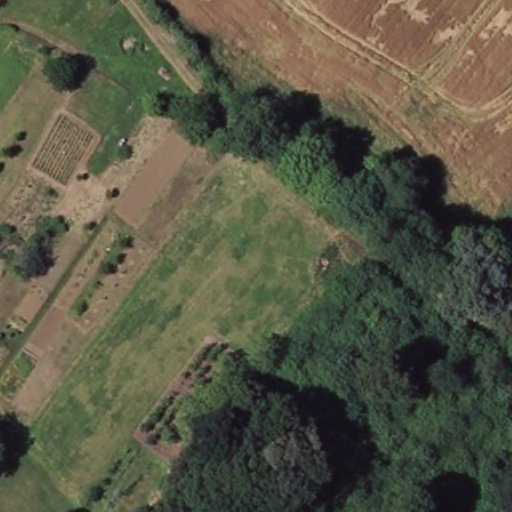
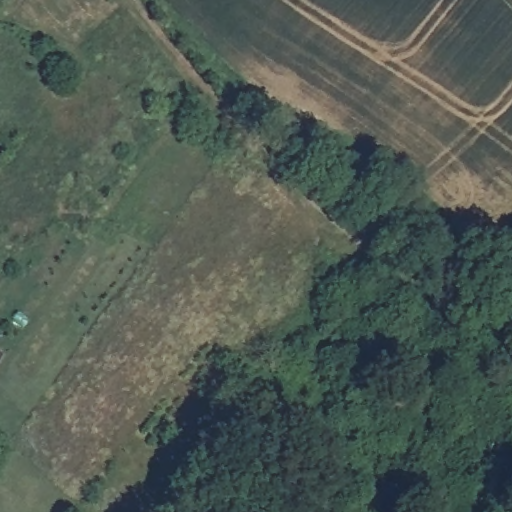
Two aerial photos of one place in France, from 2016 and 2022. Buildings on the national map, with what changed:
unchanged [(222,139),(211,150),(189,126),(200,116),(222,139)]

